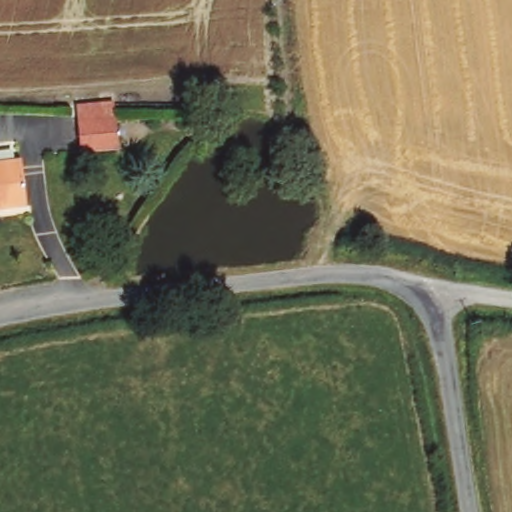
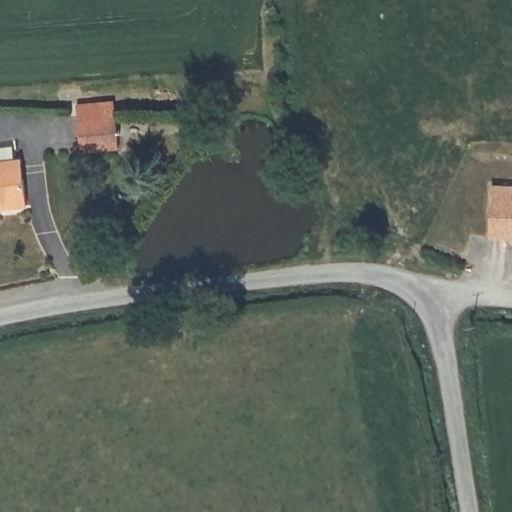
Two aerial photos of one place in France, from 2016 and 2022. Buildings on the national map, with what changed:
unchanged [(81,151),(78,120),(76,105),(114,101),(116,117),(119,148),(81,151)]
unchanged [(21,159),(26,205),(0,209),(0,161),(21,159)]
new [(512,239),(490,238),(491,185),(512,185),(512,239)]

